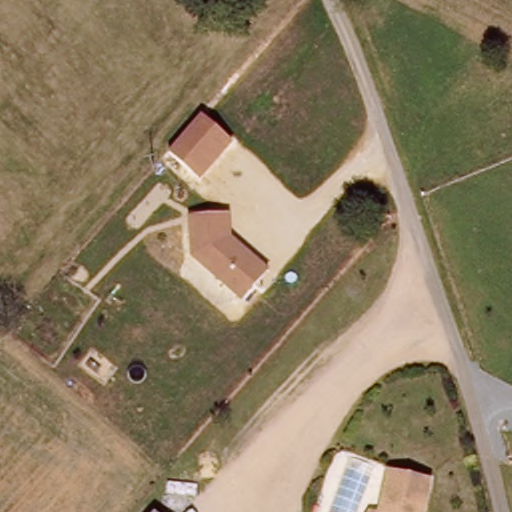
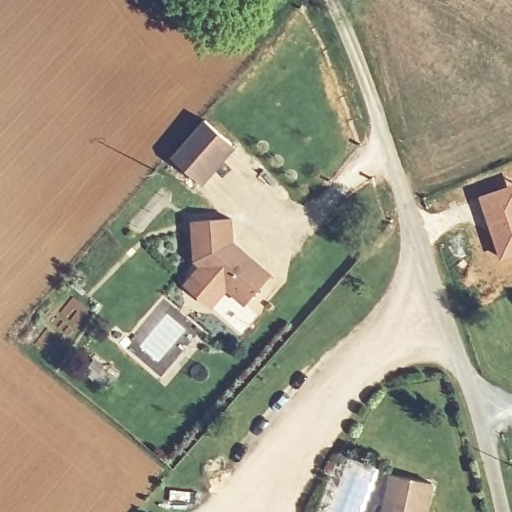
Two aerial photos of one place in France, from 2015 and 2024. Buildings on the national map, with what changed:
unchanged [(236,149),(203,185),(172,157),(203,121),(236,149)]
new [(512,256),(500,260),(477,195),(512,184),(512,256)]
unchanged [(237,243),(268,275),(245,305),(226,289),(210,306),(187,285),(202,270),(192,261),(190,219),(232,220),(237,243)]
unchanged [(436,482),(430,512),(386,512),(394,473),(436,482)]

